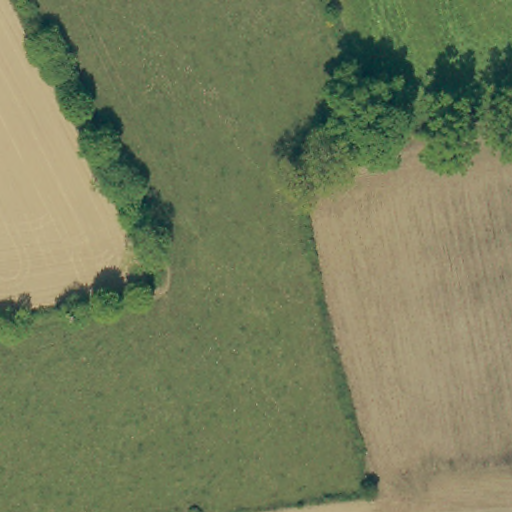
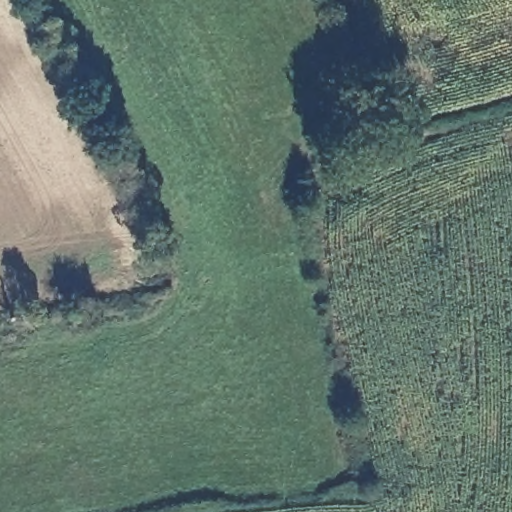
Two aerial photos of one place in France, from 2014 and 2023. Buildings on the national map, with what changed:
[]

